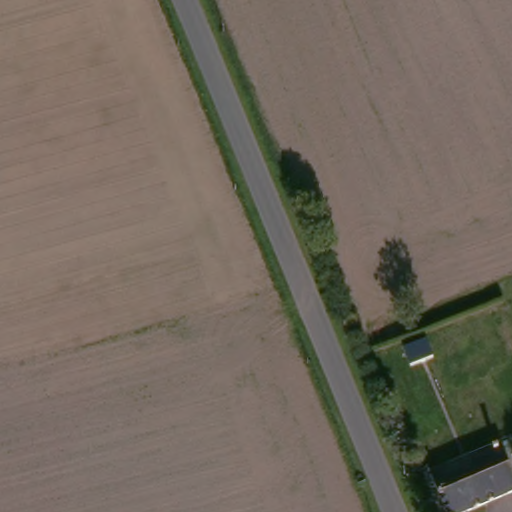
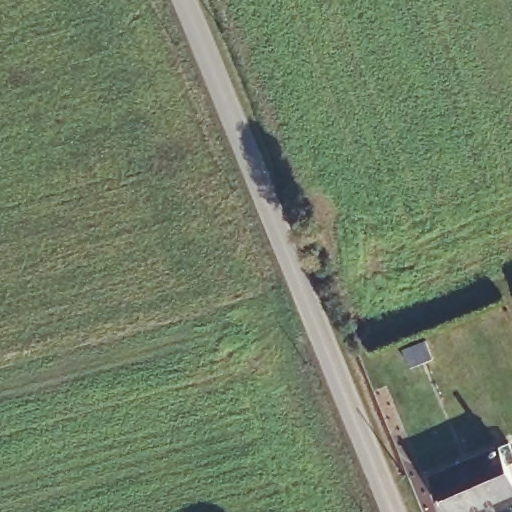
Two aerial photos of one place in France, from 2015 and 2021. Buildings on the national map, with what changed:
unchanged [(505,448),(512,465),(512,470),(504,473),(512,494),(512,496),(482,510),(464,465),(495,452),(505,448)]
unchanged [(482,510),(476,512),(442,512),(430,480),(464,465),(482,510)]

